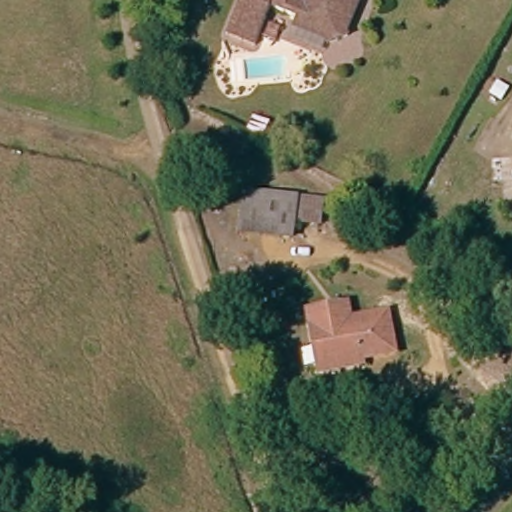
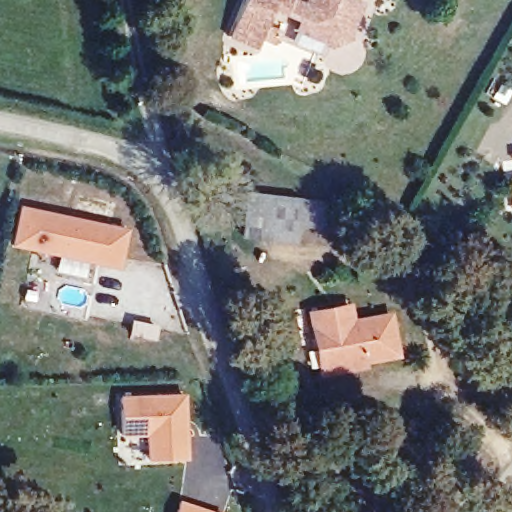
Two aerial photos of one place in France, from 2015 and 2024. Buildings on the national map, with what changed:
unchanged [(273,7),(255,45),(227,32),(242,0),(297,0),(304,4),(306,0),(356,0),(367,4),(349,42),(324,50),(321,40),(294,28),(298,20),(273,7)]
unchanged [(247,190),(327,202),(324,230),(299,227),(295,244),(240,236),(247,190)]
new [(128,228),(119,269),(10,246),(19,205),(128,228)]
unchanged [(321,377),(317,351),(311,312),(335,309),(352,307),(354,325),(391,318),(398,360),(361,365),(362,370),(321,377)]
new [(188,460),(145,461),(145,435),(119,436),(119,395),(185,392),(188,460)]
new [(215,512),(174,512),(178,500),(215,512)]

